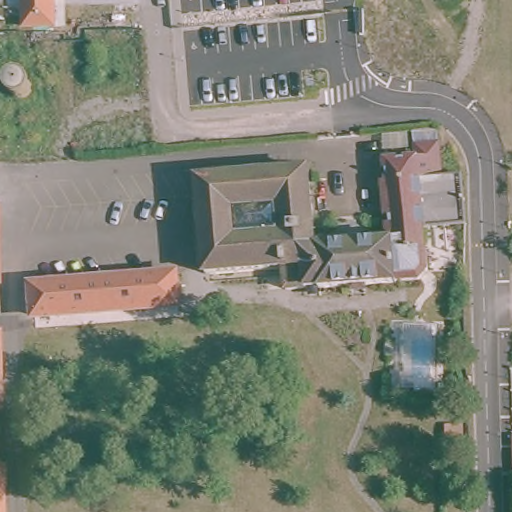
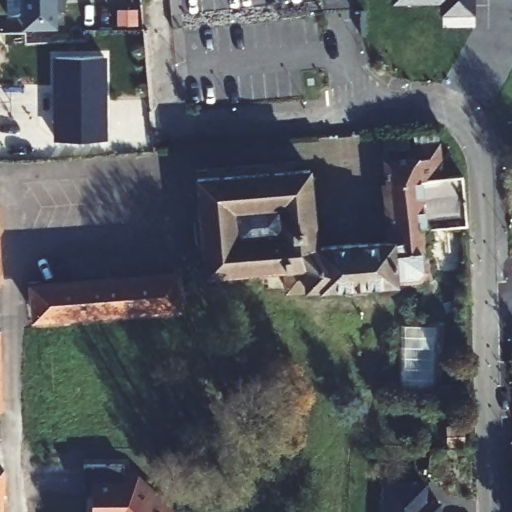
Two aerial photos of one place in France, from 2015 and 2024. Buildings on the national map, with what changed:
unchanged [(21,25),(20,0),(50,0),(50,25),(21,25)]
new [(391,5),(391,0),(474,0),(474,12),(440,15),(440,4),(391,5)]
new [(104,139),(60,139),(58,57),(104,57),(104,139)]
unchanged [(439,174),(459,174),(462,226),(419,228),(422,275),(411,281),(281,293),(279,275),(269,275),(269,265),(201,270),(192,176),(301,168),(306,240),(312,240),(313,247),(377,244),(377,235),(384,235),(380,156),(401,155),(401,140),(436,138),(439,174)]
unchanged [(30,318),(28,287),(168,277),(171,310),(30,318)]
unchanged [(512,426),(512,447),(507,447),(509,425),(512,426)]
new [(123,460),(124,475),(137,475),(170,509),(166,512),(94,512),(93,493),(101,495),(102,485),(88,483),(87,459),(123,460)]
unchanged [(2,501),(0,502),(0,474),(3,475),(2,501)]
new [(382,485),(427,484),(427,502),(440,503),(440,512),(382,512),(382,485)]

